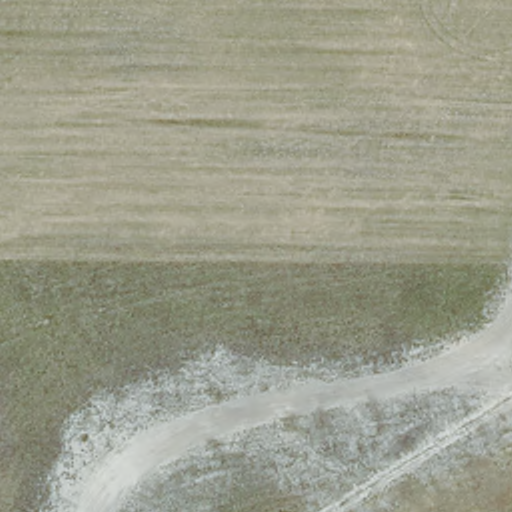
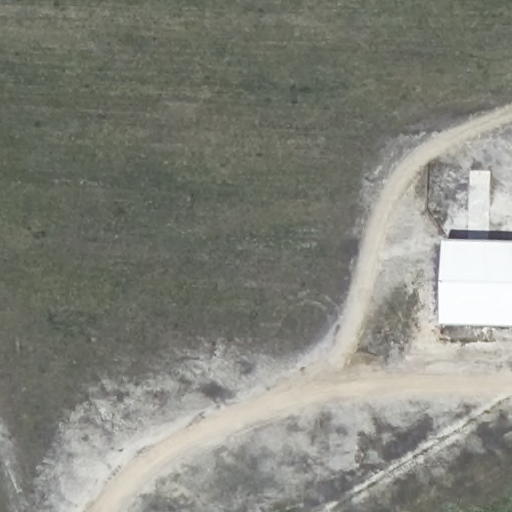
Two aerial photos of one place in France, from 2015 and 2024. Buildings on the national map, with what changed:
new [(512,245),(512,327),(445,325),(447,243),(512,245)]

